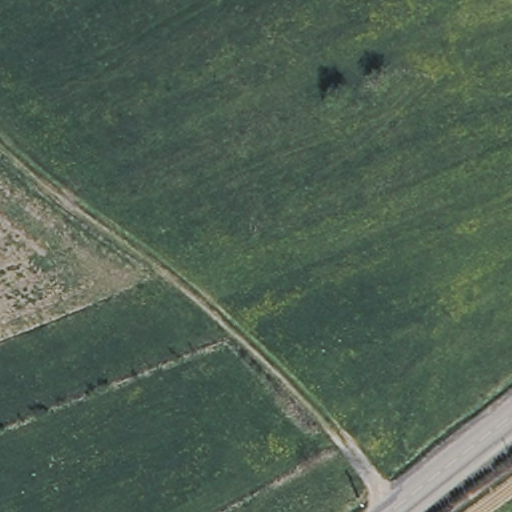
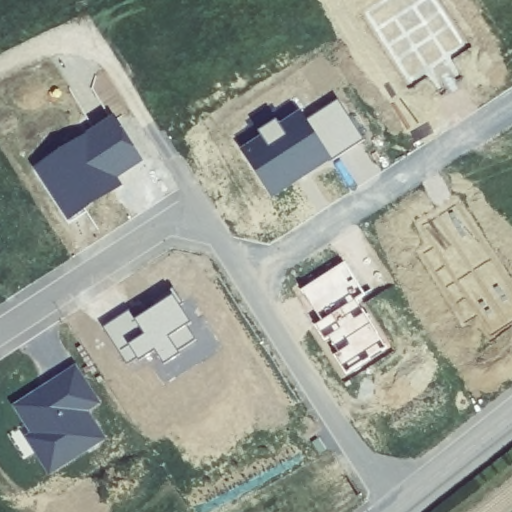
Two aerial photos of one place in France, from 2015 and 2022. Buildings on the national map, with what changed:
new [(361,139),(268,196),(245,153),(262,141),(255,128),(276,117),(285,128),(337,95),(361,139)]
new [(113,120),(140,160),(114,177),(120,186),(70,218),(38,169),(113,120)]
new [(343,261),(363,295),(355,302),(386,349),(345,377),(314,326),(322,321),(300,288),(343,261)]
new [(128,311),(135,320),(172,294),(190,322),(186,324),(195,339),(175,350),(178,354),(163,362),(154,349),(137,359),(137,357),(125,363),(102,328),(128,311)]
new [(76,363),(102,404),(90,411),(108,440),(48,476),(25,436),(29,432),(12,406),(76,363)]
new [(318,439),(325,450),(319,453),(312,443),(318,439)]

